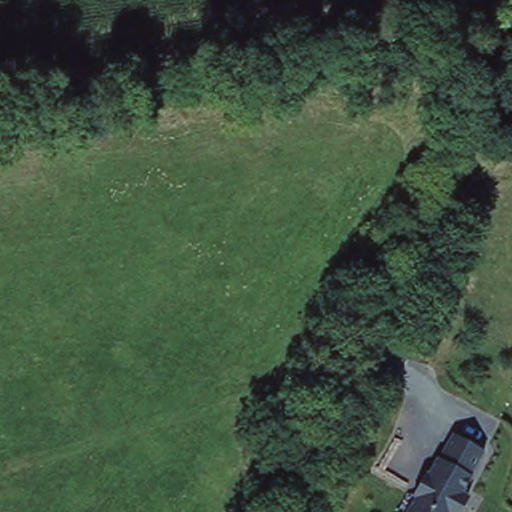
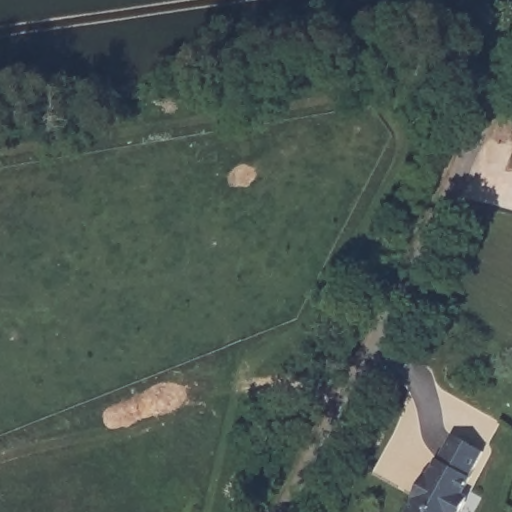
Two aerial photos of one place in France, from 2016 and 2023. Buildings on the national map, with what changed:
unchanged [(449,434),(487,453),(467,489),(473,492),(462,512),(406,512),(449,434)]

